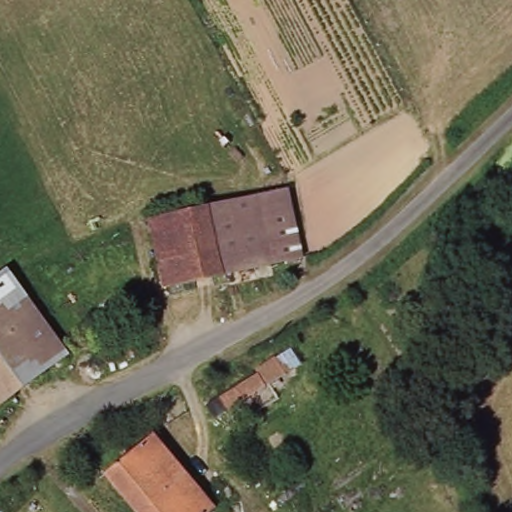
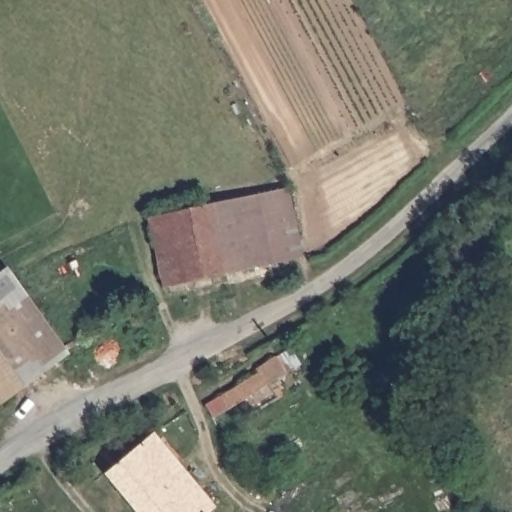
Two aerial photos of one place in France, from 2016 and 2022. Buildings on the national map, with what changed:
unchanged [(287,188),(302,257),(225,274),(163,288),(147,218),(287,188)]
unchanged [(6,268),(68,354),(0,404),(0,272),(6,268)]
unchanged [(206,405),(219,397),(258,373),(256,370),(276,357),(287,374),(228,410),(214,419),(206,405)]
unchanged [(216,507),(209,512),(136,512),(104,473),(153,433),(216,507)]

